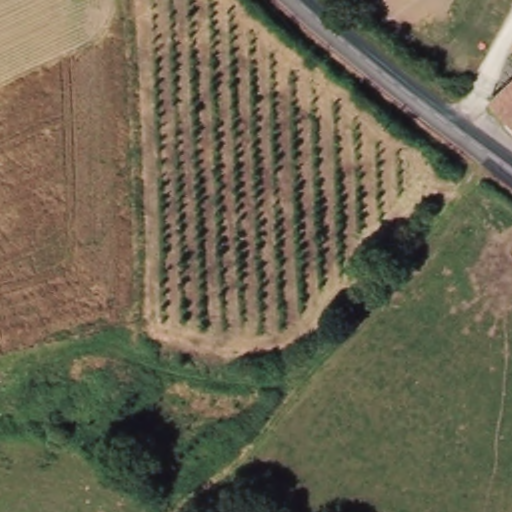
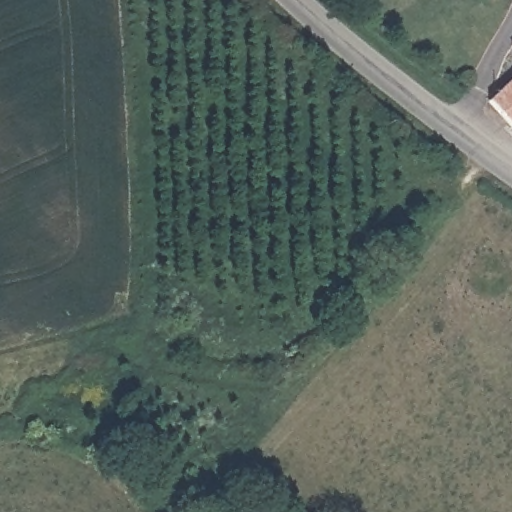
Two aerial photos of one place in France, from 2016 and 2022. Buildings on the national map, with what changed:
unchanged [(503,91),(505,89),(512,82),(512,129),(488,105),(503,91)]

